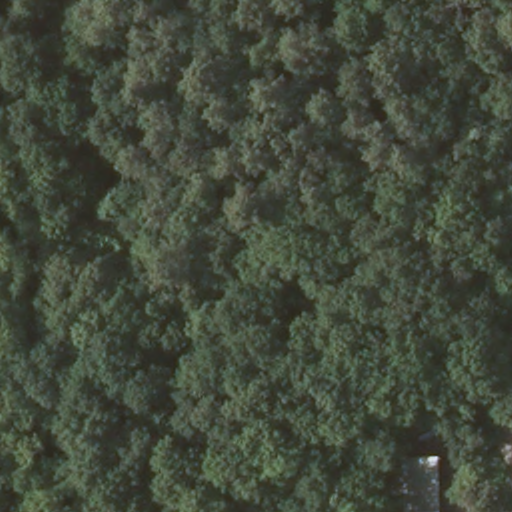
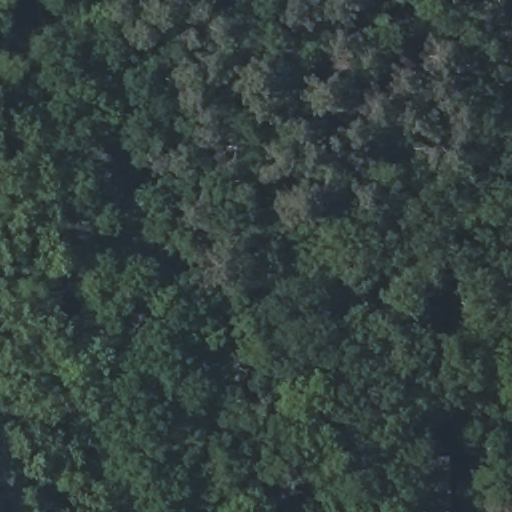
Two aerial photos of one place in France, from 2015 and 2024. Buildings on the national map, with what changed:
unchanged [(450,509),(450,512),(410,512),(410,506),(450,509)]

